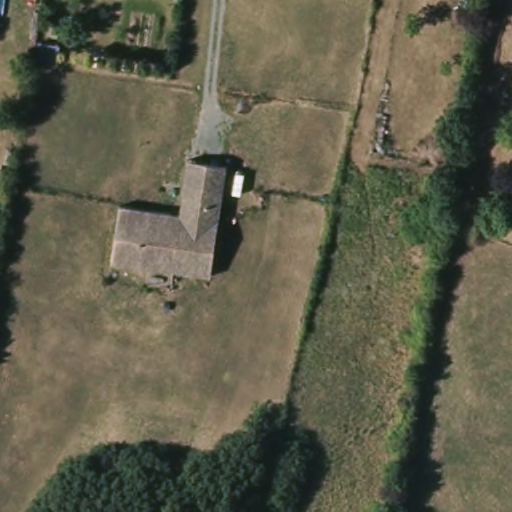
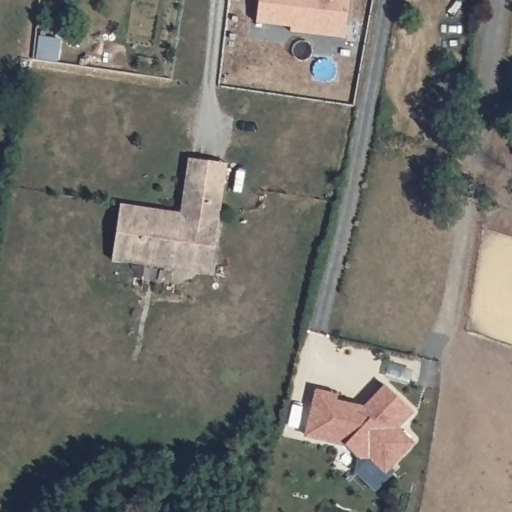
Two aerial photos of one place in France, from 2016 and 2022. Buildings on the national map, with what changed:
new [(289,31),(289,26),(256,22),(258,0),(349,0),(345,37),(289,31)]
unchanged [(113,256),(121,200),(181,208),(185,179),(189,154),(227,159),(224,184),(212,270),(113,256)]
new [(315,388),(338,393),(337,399),(364,405),(384,384),(414,412),(399,427),(414,441),(385,474),(369,458),(360,458),(346,445),(304,436),(315,388)]

